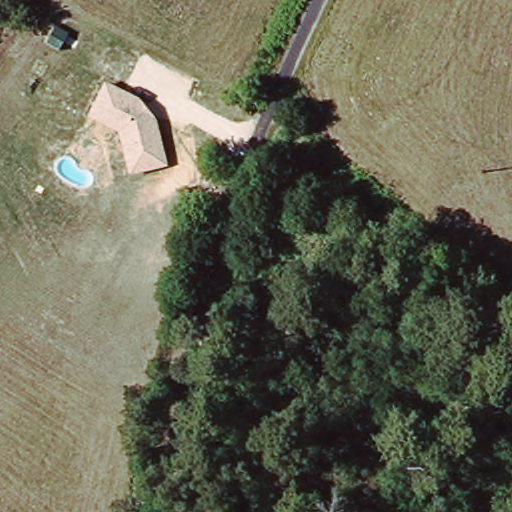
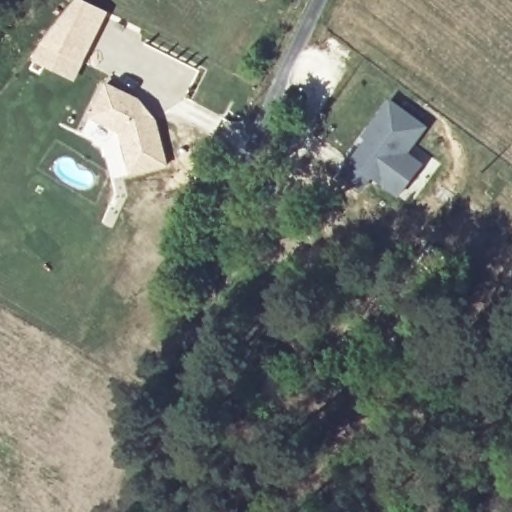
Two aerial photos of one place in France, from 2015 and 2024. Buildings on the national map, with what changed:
new [(63,17),(79,0),(108,14),(84,63),(42,43),(63,17)]
unchanged [(137,97),(155,117),(167,166),(129,175),(118,132),(88,119),(104,83),(137,97)]
new [(340,171),(349,157),(366,136),(363,133),(368,126),(389,98),(424,125),(404,150),(417,160),(393,191),(381,182),(371,195),(340,171)]

